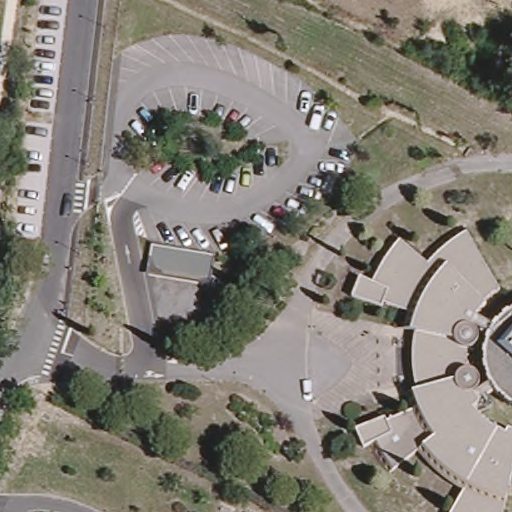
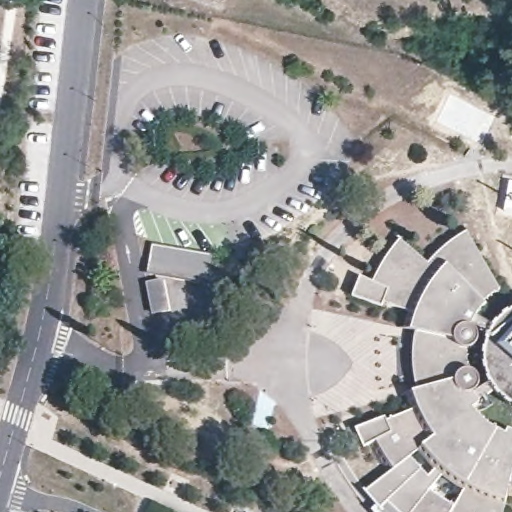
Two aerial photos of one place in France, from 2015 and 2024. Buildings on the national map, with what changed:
unchanged [(410,312),(385,303),(384,307),(356,297),(363,278),(368,280),(372,271),(383,251),(395,236),(425,259),(432,250),(446,237),(462,227),(463,227),(500,289),(490,297),(484,303),(487,306),(482,311),(478,317),(496,327),(494,329),(493,331),(490,335),(474,326),(473,327),(477,332),(479,334),(480,338),(480,342),(478,345),(476,347),(474,349),(471,349),(468,349),(470,370),(474,371),(476,373),(480,377),(481,383),(479,388),(475,392),(474,393),(475,395),(480,405),(474,411),(482,419),(497,430),(509,436),(511,432),(512,432),(512,500),(508,499),(505,512),(454,512),(456,508),(465,492),(458,488),(442,476),(436,471),(423,457),(419,452),(411,458),(391,473),(389,471),(373,446),(366,448),(358,428),(386,418),(389,423),(411,412),(406,396),(418,392),(417,387),(413,367),(414,347),(417,332),(404,329),(410,312)]
unchanged [(207,286),(147,275),(152,249),(212,260),(207,286)]
unchanged [(492,333),(493,331),(494,329),(496,327),(499,322),(505,316),(512,312),(512,408),(505,404),(495,394),(494,392),(492,390),(490,386),(485,373),(484,360),(486,347),(490,335),(492,333)]
new [(429,478),(436,471),(442,476),(432,491),(456,508),(454,512),(392,512),(387,507),(383,512),(379,512),(372,505),(362,493),(391,473),(411,458),(429,478)]

